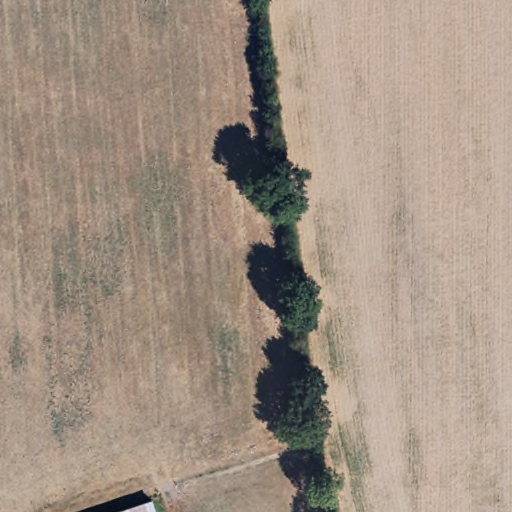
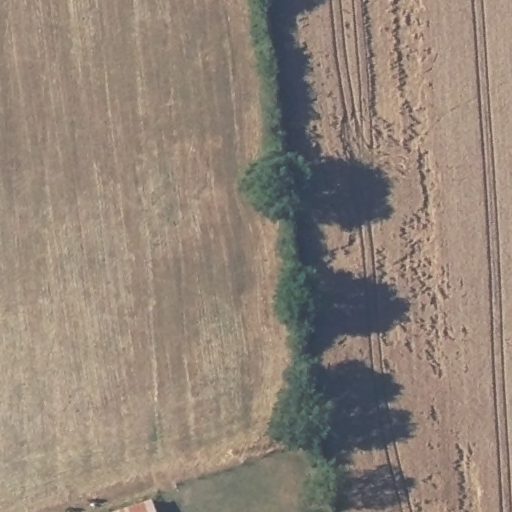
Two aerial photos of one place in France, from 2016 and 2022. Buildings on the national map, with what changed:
unchanged [(152,507),(153,512),(133,512),(152,507)]

